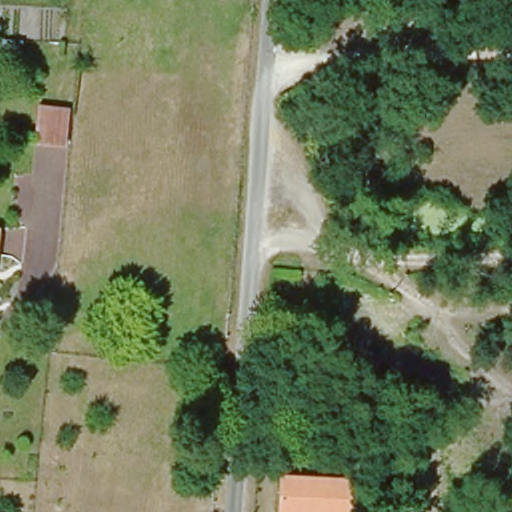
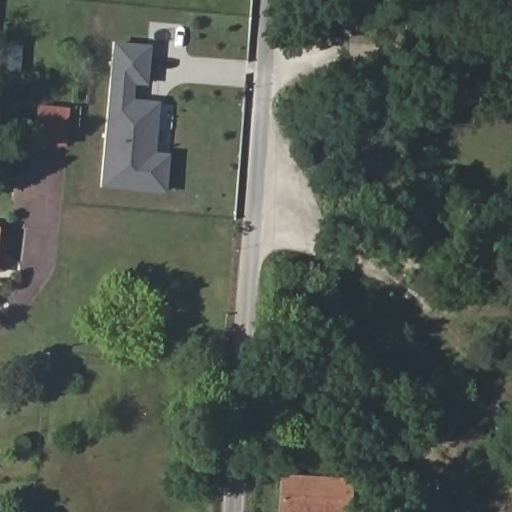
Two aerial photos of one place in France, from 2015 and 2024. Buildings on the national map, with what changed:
new [(115,42),(150,45),(147,80),(129,78),(127,98),(159,102),(154,152),(169,154),(162,211),(102,203),(115,42)]
unchanged [(63,103),(60,150),(28,148),(30,102),(63,103)]
unchanged [(351,481),(350,512),(284,512),(286,479),(351,481)]

